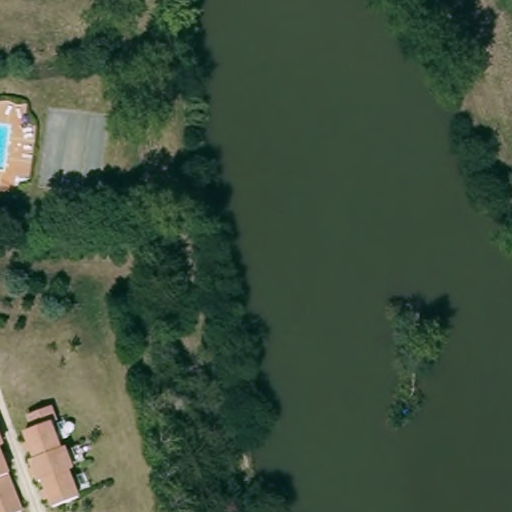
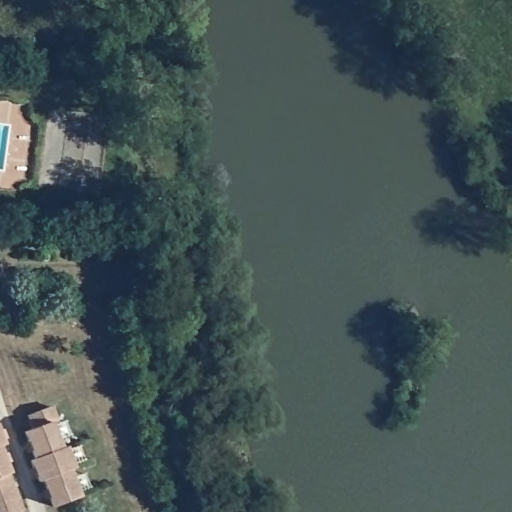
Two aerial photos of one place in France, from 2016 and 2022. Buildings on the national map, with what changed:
unchanged [(59,418),(51,421),(61,447),(68,445),(77,465),(71,468),(82,496),(53,505),(42,480),(38,481),(28,457),(32,456),(22,429),(28,427),(24,414),(55,403),(59,418)]
unchanged [(1,425),(7,440),(2,443),(13,467),(9,469),(25,508),(16,512),(0,512),(0,425),(1,425)]

